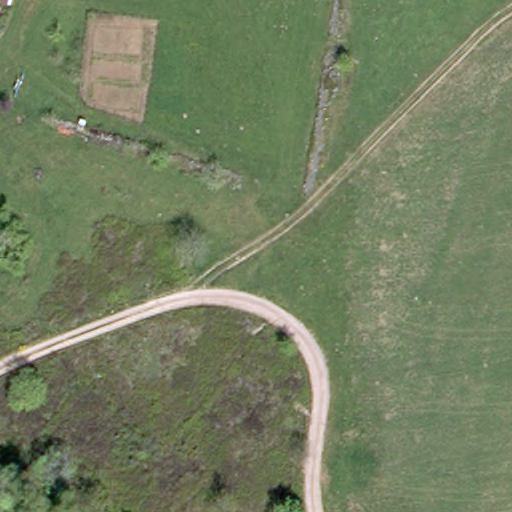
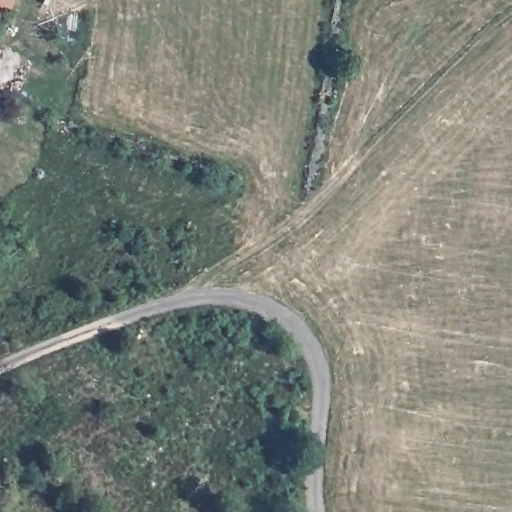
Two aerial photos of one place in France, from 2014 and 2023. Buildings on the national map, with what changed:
unchanged [(0,2),(0,0),(1,0),(0,2)]

